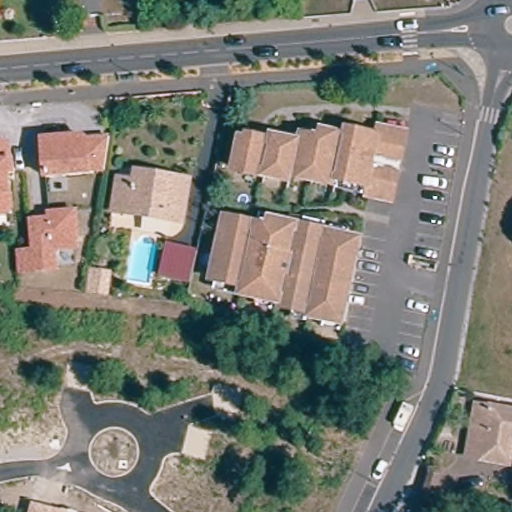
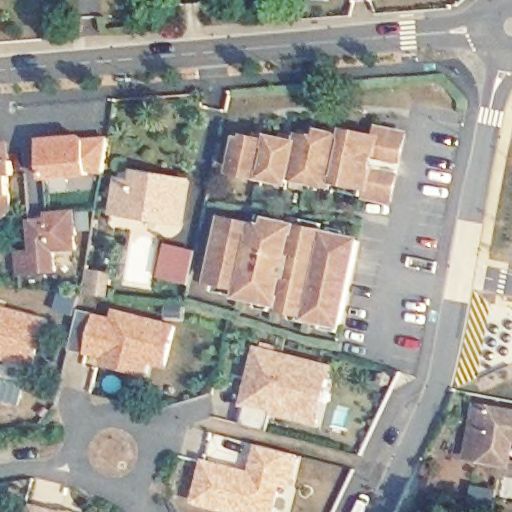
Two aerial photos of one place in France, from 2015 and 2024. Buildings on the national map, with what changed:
unchanged [(236,134),(249,137),(250,133),(266,137),(268,132),(291,137),(293,129),(321,136),(323,129),(346,134),(348,126),(377,133),(380,123),(406,129),(400,159),(373,153),(371,159),(398,165),(391,195),(365,189),(366,181),(339,175),(337,180),(290,170),(290,177),(230,164),(236,134)]
unchanged [(102,173),(85,169),(86,174),(44,178),(41,139),(80,136),(84,140),(108,139),(102,173)]
unchanged [(10,161),(11,174),(6,174),(10,209),(4,215),(0,216),(0,143),(4,143),(5,161),(10,161)]
unchanged [(179,218),(106,207),(112,172),(127,174),(129,168),(130,164),(162,169),(185,173),(179,218)]
unchanged [(221,209),(252,215),(254,208),(355,229),(336,314),(305,307),(305,303),(272,295),(272,292),(237,284),(239,277),(208,269),(221,209)]
unchanged [(16,252),(31,251),(29,221),(47,220),(46,214),(73,212),(75,234),(72,234),(73,249),(52,251),(54,270),(18,274),(16,252)]
unchanged [(197,248),(191,284),(159,277),(165,242),(197,248)]
unchanged [(90,271),(111,273),(110,297),(89,294),(90,271)]
new [(38,369),(0,359),(0,304),(51,317),(38,369)]
new [(170,367),(153,364),(150,376),(104,364),(105,358),(73,349),(81,310),(114,318),(116,308),(181,323),(170,367)]
new [(337,363),(323,425),(275,413),(270,431),(245,424),(250,406),(244,404),(257,344),(337,363)]
unchanged [(505,433),(500,456),(463,449),(472,404),(512,411),(512,434),(505,433)]
new [(202,457),(249,469),(256,441),(294,451),(287,481),(277,478),(268,512),(253,512),(191,496),(202,457)]
unchanged [(69,512),(30,512),(32,503),(69,512)]

